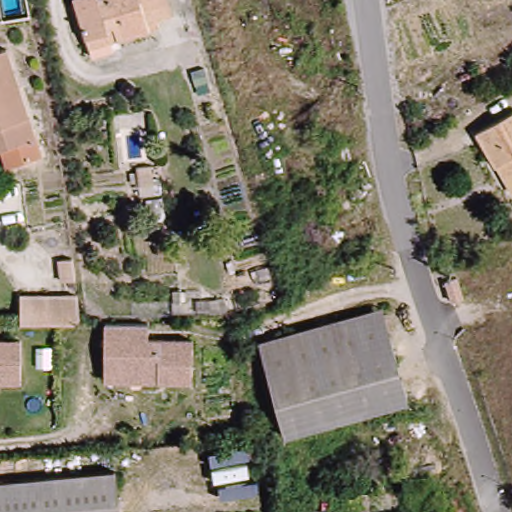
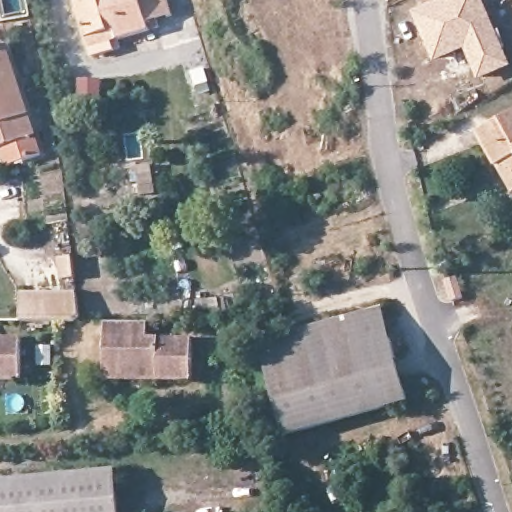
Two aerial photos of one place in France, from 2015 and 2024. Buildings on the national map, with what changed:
unchanged [(93,39),(78,0),(177,0),(181,10),(157,19),(161,29),(131,38),(96,49),(93,39)]
new [(439,0),(484,0),(512,65),(478,80),(463,50),(434,62),(412,12),(439,0)]
unchanged [(43,132),(0,147),(0,52),(11,49),(43,132)]
unchanged [(497,162),(480,127),(512,111),(512,188),(497,162)]
unchanged [(73,259),(76,280),(60,281),(56,260),(73,259)]
unchanged [(21,293),(78,295),(77,323),(21,323),(21,293)]
unchanged [(385,308),(409,405),(285,434),(262,338),(385,308)]
unchanged [(133,324),(143,325),(142,335),(188,336),(186,380),(98,377),(100,323),(133,324)]
unchanged [(15,380),(0,379),(0,338),(17,338),(15,380)]
unchanged [(113,467),(116,512),(0,512),(0,475),(87,469),(113,467)]

